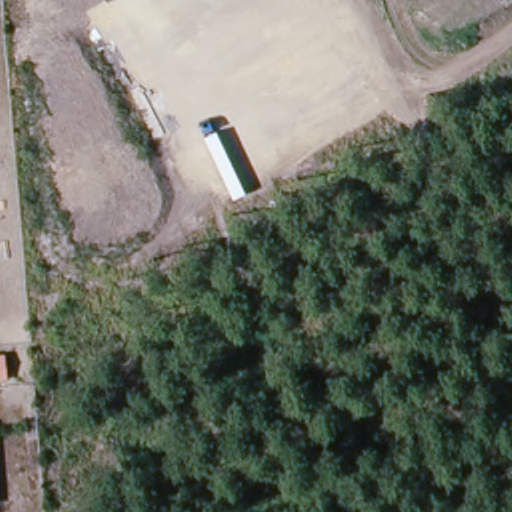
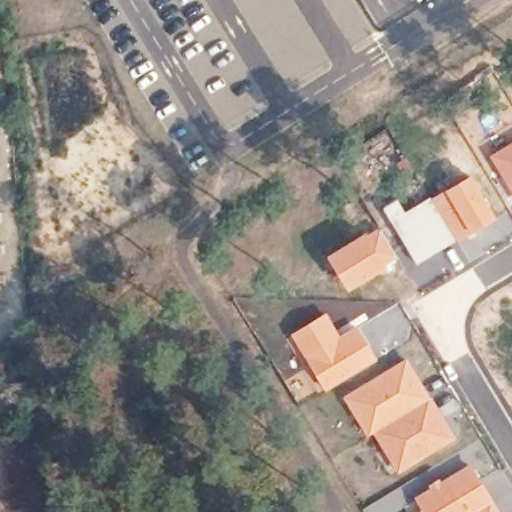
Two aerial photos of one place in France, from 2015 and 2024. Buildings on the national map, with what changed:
new [(512,142),(512,192),(490,155),(512,142)]
new [(473,173),(498,217),(457,241),(431,197),(473,173)]
new [(398,199),(406,211),(431,197),(457,241),(417,265),(383,207),(398,199)]
new [(378,225),(398,260),(349,290),(327,255),(378,225)]
new [(326,311),(340,333),(361,325),(362,325),(365,330),(371,339),(381,356),(325,390),(290,333),(326,311)]
unchanged [(0,375),(0,355),(1,355),(2,375),(0,375)]
new [(407,356),(458,437),(397,472),(373,433),(368,436),(343,396),(407,356)]
new [(435,481),(471,462),(494,500),(473,512),(423,512),(414,496),(435,481)]
new [(494,500),(501,512),(473,512),(494,500)]

